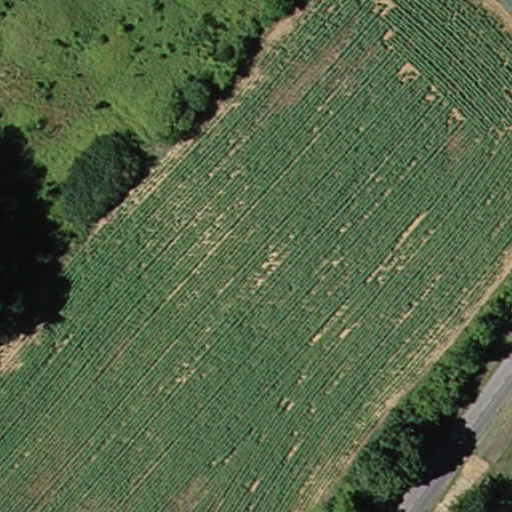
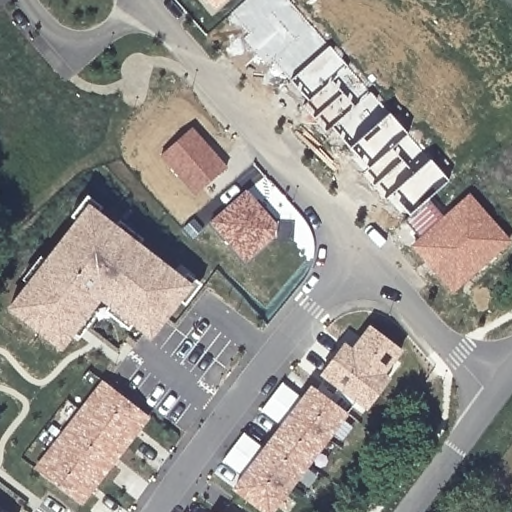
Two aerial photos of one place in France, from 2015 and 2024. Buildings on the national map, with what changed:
new [(211,0),(223,0),(216,6),(211,0)]
new [(348,68),(332,82),(354,107),(370,92),(388,113),(407,134),(390,147),(414,174),(429,160),(449,182),(429,201),(411,216),(368,170),(349,149),(331,127),(325,134),(302,106),(308,100),(272,60),(266,66),(243,39),(248,34),(230,14),(246,0),(290,0),(329,47),(348,68)]
new [(194,196),(159,156),(192,127),(228,169),(194,196)]
new [(246,191),(275,224),(274,236),(245,262),(210,222),(246,191)]
new [(509,243),(453,296),(410,249),(421,240),(403,222),(427,198),(446,217),(469,196),(509,243)]
new [(197,284),(156,341),(105,301),(63,353),(11,310),(92,204),(197,284)]
new [(385,375),(392,380),(367,411),(355,402),(350,411),(331,397),(337,389),(317,374),(343,342),(350,348),(369,326),(403,351),(385,375)]
new [(86,506),(37,467),(103,380),(152,418),(86,506)]
new [(353,412),(278,512),(265,512),(236,492),(315,385),(353,412)]

